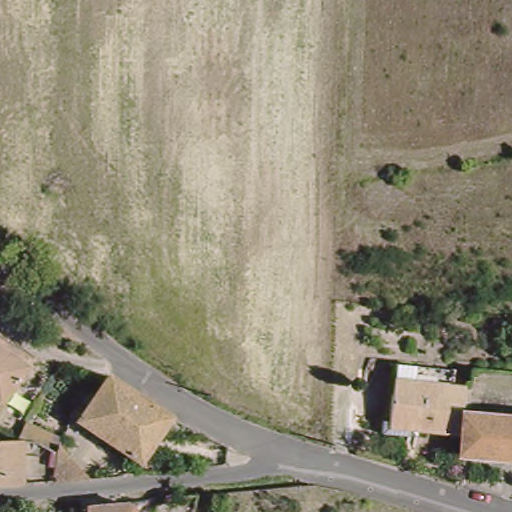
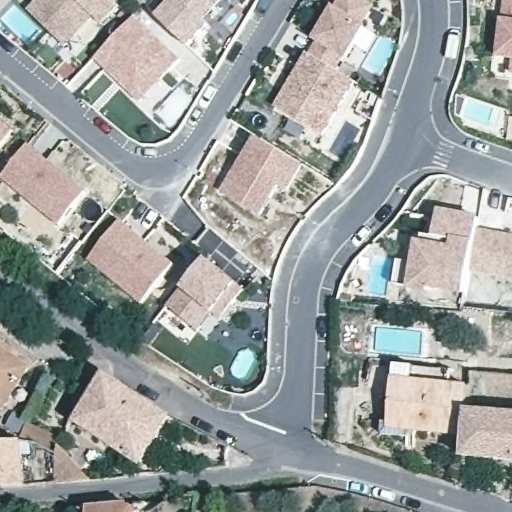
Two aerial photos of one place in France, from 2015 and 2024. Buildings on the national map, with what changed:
new [(119,7),(104,25),(94,17),(67,47),(29,9),(37,0),(112,0),(119,7)]
new [(166,0),(213,0),(202,11),(209,18),(188,40),(157,10),(166,0)]
new [(321,34),(317,32),(336,2),(337,2),(339,0),(374,0),(363,18),(367,21),(348,51),(344,49),(336,62),(312,48),(321,34)]
new [(510,74),(512,60),(498,59),(502,19),(504,0),(512,0),(512,74),(510,74)]
new [(136,10),(181,54),(136,94),(90,51),(136,10)]
new [(336,62),(333,69),(357,82),(323,136),(275,107),(312,48),(336,62)]
new [(14,131),(0,147),(0,120),(14,131)]
new [(289,191),(281,186),(263,217),(223,192),(257,135),(305,165),(289,191)]
new [(87,192),(60,226),(1,179),(30,145),(87,192)]
new [(478,229),(471,271),(466,296),(430,289),(429,293),(408,290),(408,286),(395,282),(400,260),(414,262),(418,242),(433,244),(441,209),(481,217),(478,229)]
new [(175,265),(141,303),(90,260),(122,220),(175,265)]
new [(471,271),(478,229),(512,234),(512,278),(471,271)]
new [(210,257),(247,289),(225,317),(216,309),(199,329),(170,305),(210,257)]
unchanged [(27,362),(0,398),(0,344),(27,362)]
unchanged [(460,410),(458,434),(384,423),(388,371),(462,381),(460,410)]
unchanged [(72,411),(79,414),(102,375),(169,419),(139,466),(66,420),(72,411)]
unchanged [(460,410),(511,414),(512,401),(512,462),(456,457),(458,434),(460,410)]
unchanged [(1,436),(4,436),(21,434),(20,476),(0,477),(0,436),(1,436)]
unchanged [(52,459),(54,451),(84,482),(49,483),(52,459)]
unchanged [(134,510),(135,512),(89,512),(127,507),(134,507),(134,510)]

